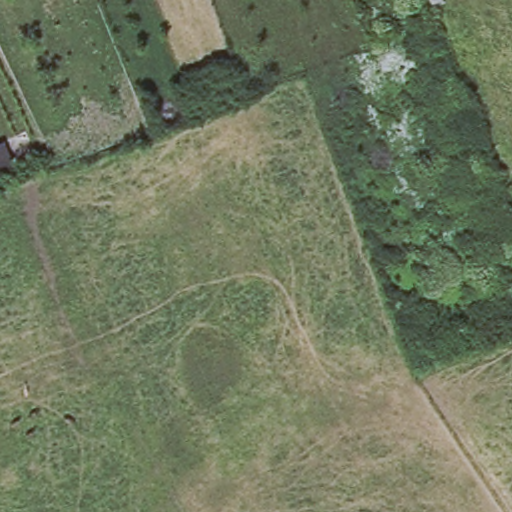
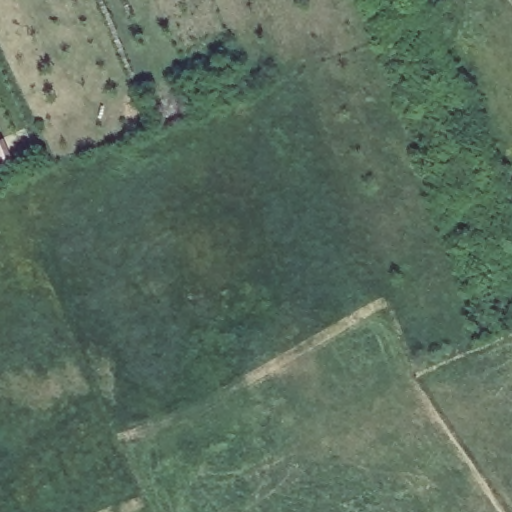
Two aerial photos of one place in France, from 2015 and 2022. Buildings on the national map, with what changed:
unchanged [(12,132),(26,152),(0,164),(0,138),(12,132)]

